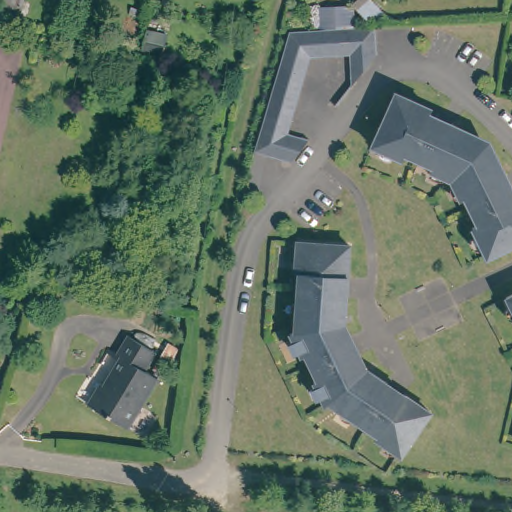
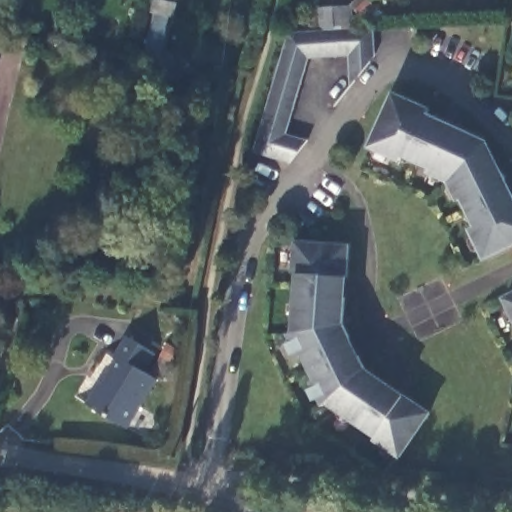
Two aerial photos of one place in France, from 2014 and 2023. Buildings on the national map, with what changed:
unchanged [(350,91),(348,60),(310,62),(288,139),(309,145),(291,167),(253,156),(289,36),(320,35),(319,14),(352,11),(354,32),(375,31),(377,59),(350,91)]
unchanged [(161,54),(142,50),(147,30),(167,35),(161,54)]
unchanged [(481,257),(467,227),(472,225),(459,197),(455,200),(445,180),(424,171),(426,166),(399,154),(396,160),(366,146),(390,94),(425,110),(446,122),(502,176),(512,191),(512,242),(481,257)]
unchanged [(424,412),(394,455),(372,440),(375,437),(322,401),(319,405),(307,381),(311,379),(299,355),(296,356),(284,333),(289,332),(293,268),(289,268),(291,242),(344,245),(341,277),(340,297),(338,323),(345,337),(353,355),(360,368),(381,383),(398,395),(424,412)]
unchanged [(506,303),(512,300),(512,315),(506,303)]
unchanged [(150,371),(163,378),(132,428),(92,404),(105,384),(109,386),(126,358),(121,355),(133,336),(161,353),(150,371)]

